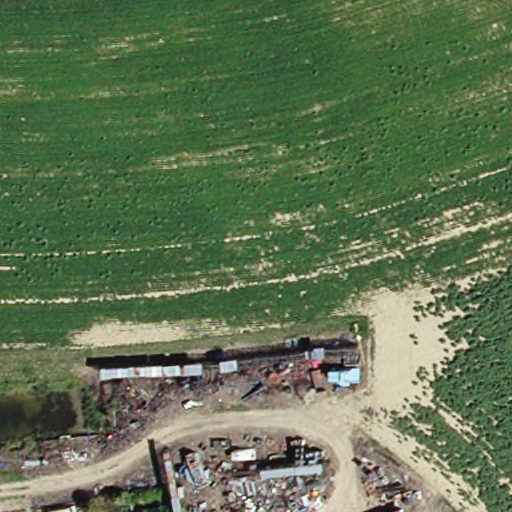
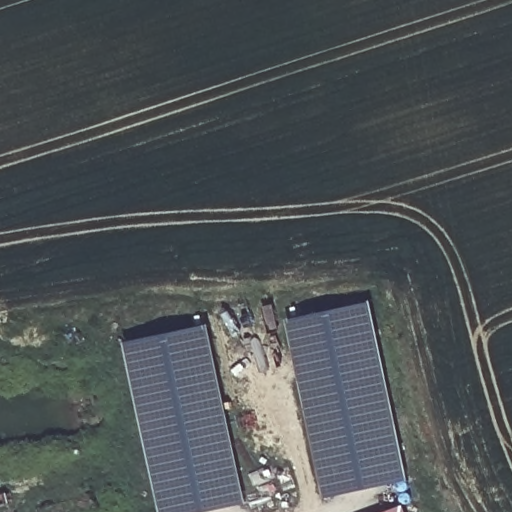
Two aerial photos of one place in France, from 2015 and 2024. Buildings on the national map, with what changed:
new [(365,304),(405,480),(325,497),(286,322),(365,304)]
new [(248,508),(227,512),(165,512),(126,345),(209,328),(248,508)]
unchanged [(415,512),(380,512),(411,502),(415,512)]

